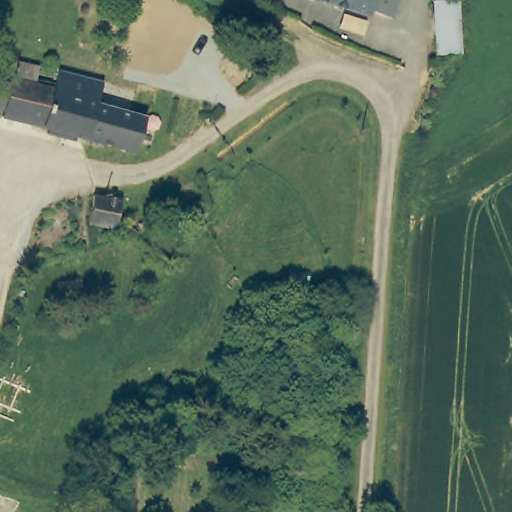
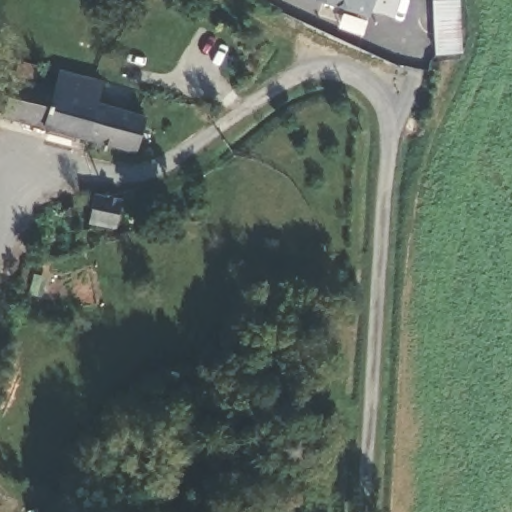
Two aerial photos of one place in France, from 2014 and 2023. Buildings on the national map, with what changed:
unchanged [(318,0),(380,0),(375,16),(318,0)]
unchanged [(466,52),(459,56),(436,57),(433,1),(444,0),(461,0),(466,52)]
unchanged [(141,154),(6,125),(8,116),(0,113),(0,82),(60,91),(61,75),(151,92),(147,118),(168,122),(159,159),(141,154)]
unchanged [(122,200),(117,230),(89,225),(94,193),(122,200)]

